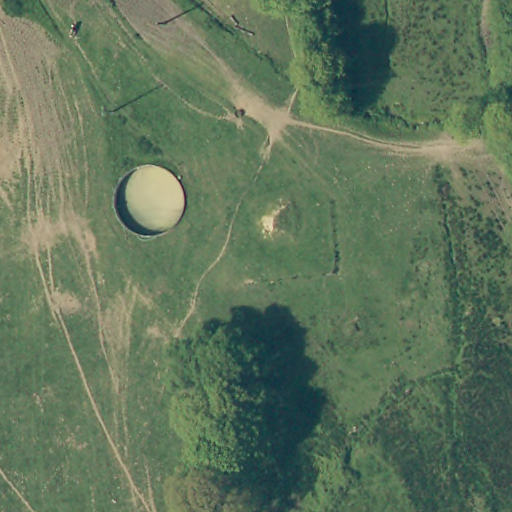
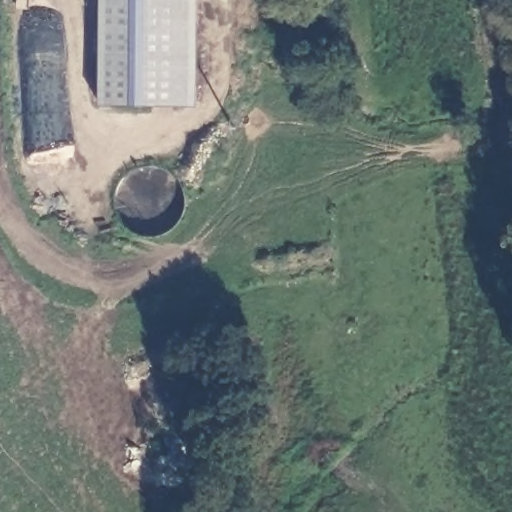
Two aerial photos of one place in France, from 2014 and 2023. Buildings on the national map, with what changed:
new [(197,105),(100,104),(101,0),(199,0),(197,105)]

